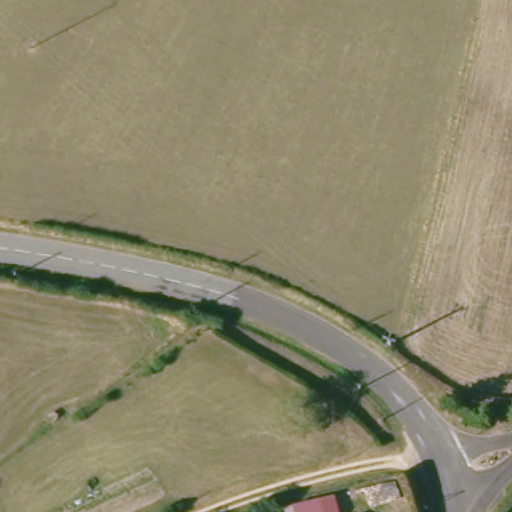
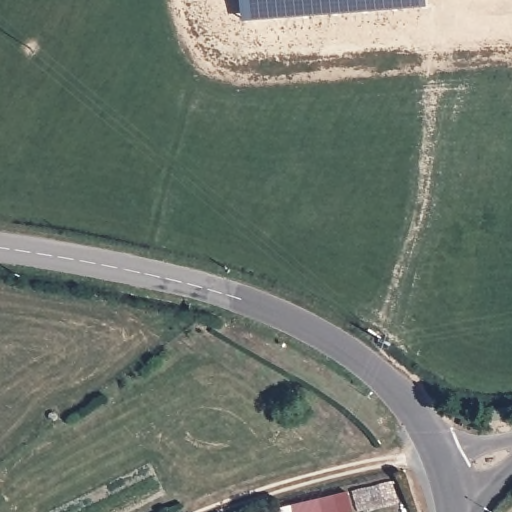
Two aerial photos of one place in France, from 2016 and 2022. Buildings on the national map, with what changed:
new [(425,6),(240,14),(240,0),(425,0),(425,6)]
unchanged [(489,410),(485,420),(475,416),(477,406),(489,410)]
unchanged [(294,512),(293,506),(328,497),(331,512),(294,512)]

